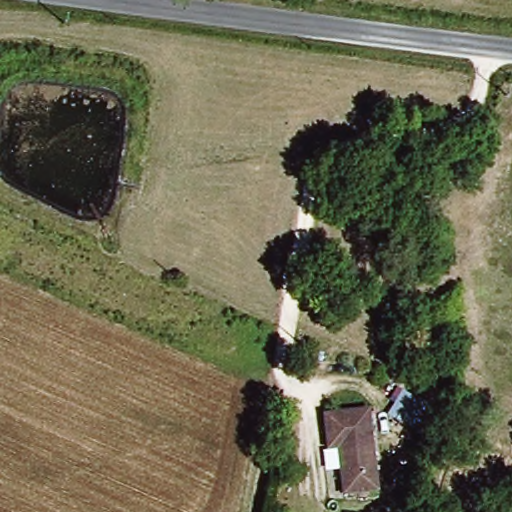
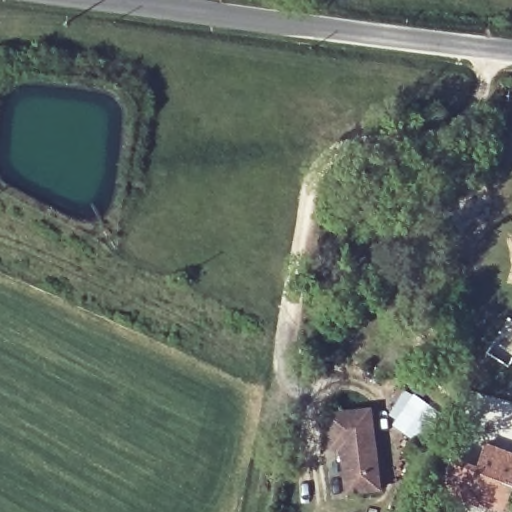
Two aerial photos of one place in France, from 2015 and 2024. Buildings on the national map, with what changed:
unchanged [(443,414),(430,437),(390,414),(403,391),(443,414)]
unchanged [(328,460),(321,419),(361,412),(375,492),(345,497),(337,460),(328,460)]
new [(474,466),(482,442),(512,453),(512,486),(503,512),(491,512),(441,495),(451,460),(474,466)]

